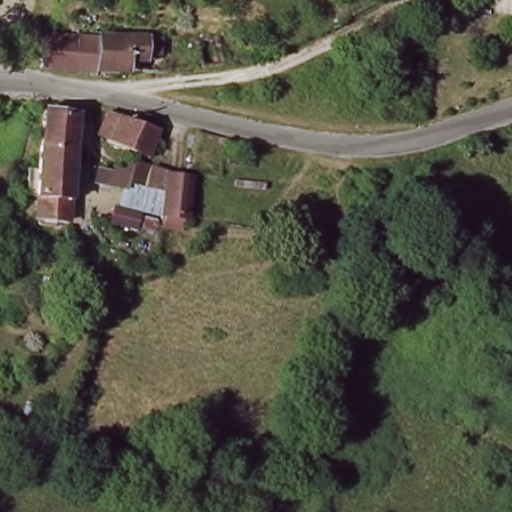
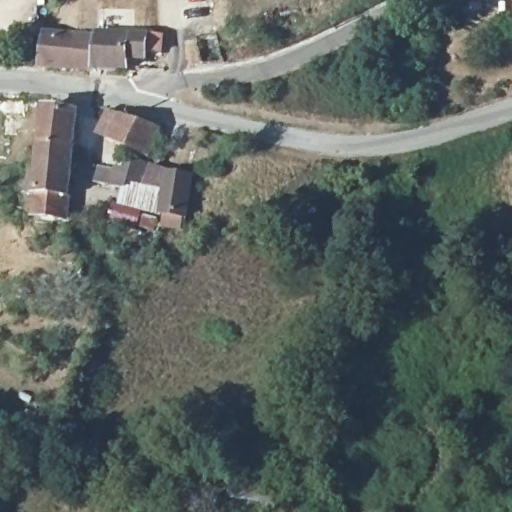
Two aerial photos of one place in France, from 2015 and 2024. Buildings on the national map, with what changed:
unchanged [(129,59),(129,69),(70,69),(72,32),(145,32),(143,29),(162,29),(162,56),(145,56),(145,60),(129,59)]
unchanged [(38,69),(41,32),(72,32),(70,69),(38,69)]
unchanged [(117,146),(118,140),(101,135),(105,112),(162,129),(160,140),(156,156),(117,146)]
unchanged [(80,122),(78,155),(75,219),(37,216),(40,149),(42,118),(80,122)]
unchanged [(110,186),(94,182),(97,167),(111,171),(128,172),(130,162),(154,167),(168,169),(190,174),(187,219),(164,216),(161,232),(137,229),(108,223),(110,205),(117,206),(119,188),(110,186)]

